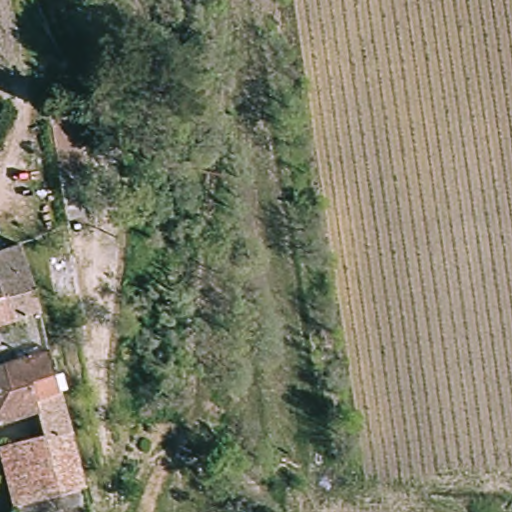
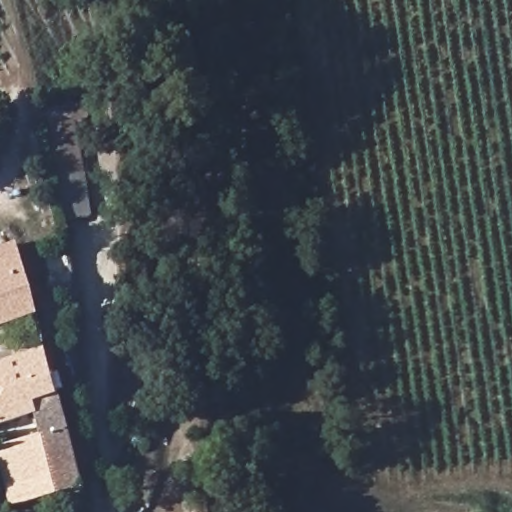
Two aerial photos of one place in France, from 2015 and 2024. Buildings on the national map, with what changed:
unchanged [(80,114),(90,200),(70,202),(62,116),(80,114)]
unchanged [(22,247),(91,505),(59,512),(29,512),(10,444),(49,433),(43,407),(0,418),(0,255),(22,247)]

